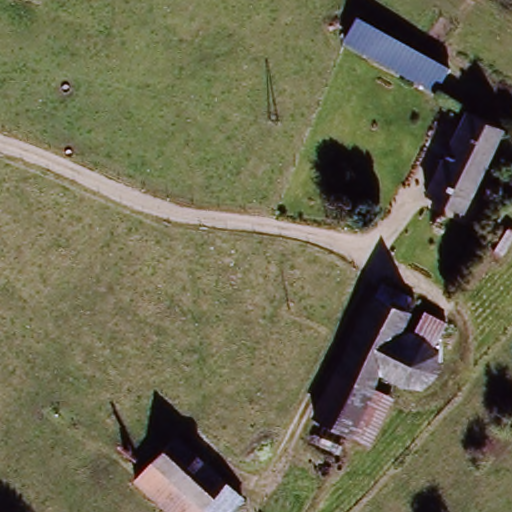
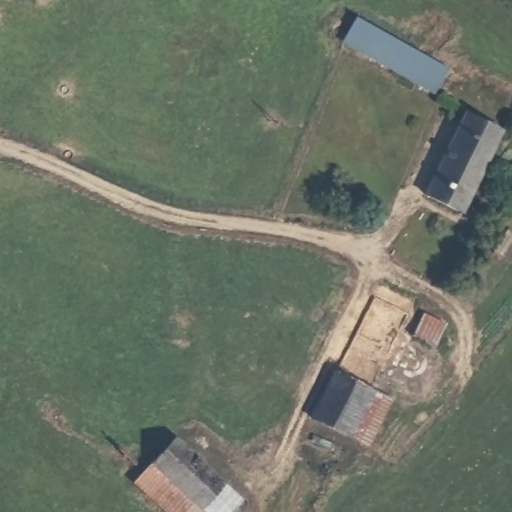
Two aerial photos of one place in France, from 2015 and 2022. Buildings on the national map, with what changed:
unchanged [(34,1),(32,0),(34,0),(34,1)]
unchanged [(364,14),(456,70),(437,102),(345,46),(364,14)]
unchanged [(466,116),(500,135),(463,212),(427,194),(466,116)]
unchanged [(417,301),(411,315),(406,329),(415,332),(425,313),(448,327),(442,338),(459,342),(454,368),(442,366),(439,378),(425,391),(414,391),(382,380),(377,391),(394,400),(375,449),(355,439),(341,462),(304,447),(382,285),(417,301)]
unchanged [(245,502),(236,512),(164,512),(134,485),(176,436),(245,502)]

